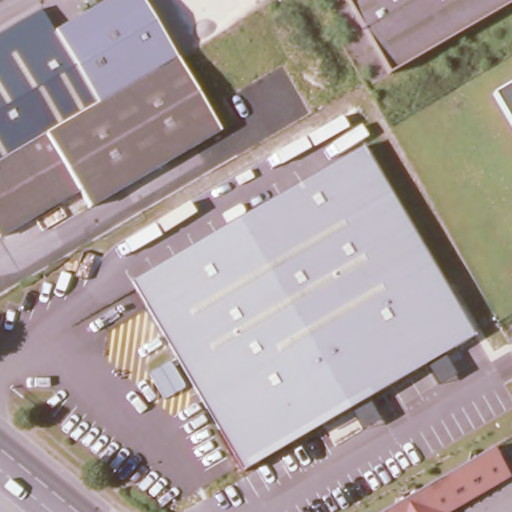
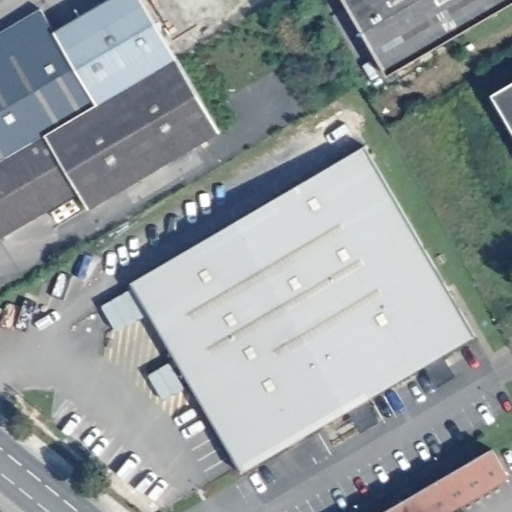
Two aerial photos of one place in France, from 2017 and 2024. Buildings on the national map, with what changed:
unchanged [(41,3),(53,24),(93,0),(149,0),(222,122),(95,200),(85,185),(2,236),(0,233),(0,29),(41,3)]
unchanged [(499,0),(385,66),(346,0),(499,0)]
unchanged [(385,66),(499,0),(512,0),(512,4),(390,74),(385,66)]
unchanged [(512,117),(498,93),(512,85),(512,117)]
unchanged [(476,333),(246,471),(132,282),(236,220),(363,145),(476,333)]
unchanged [(236,220),(132,282),(115,253),(218,191),(236,220)]
unchanged [(510,478),(453,512),(382,512),(491,448),(510,478)]

